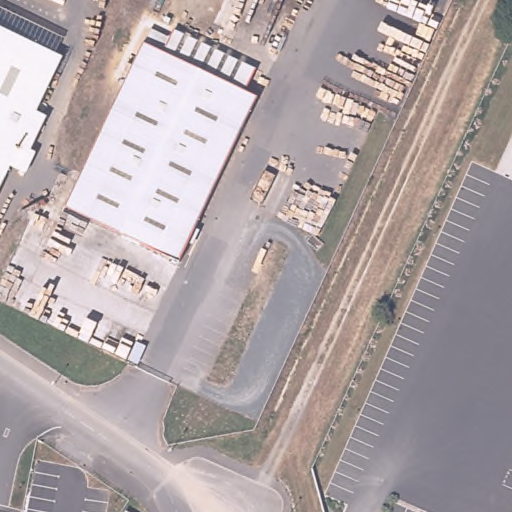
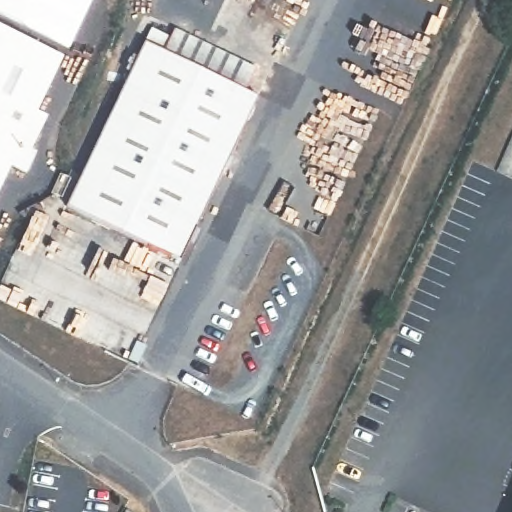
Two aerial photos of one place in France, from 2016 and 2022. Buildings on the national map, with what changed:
new [(92,0),(68,50),(0,16),(0,0),(92,0)]
unchanged [(64,56),(37,109),(46,114),(21,167),(12,163),(0,186),(0,25),(64,56)]
unchanged [(74,209),(153,46),(160,31),(181,41),(174,56),(265,101),(185,265),(74,209)]

